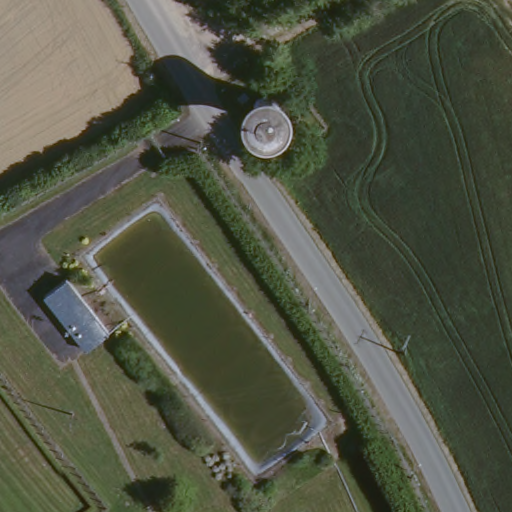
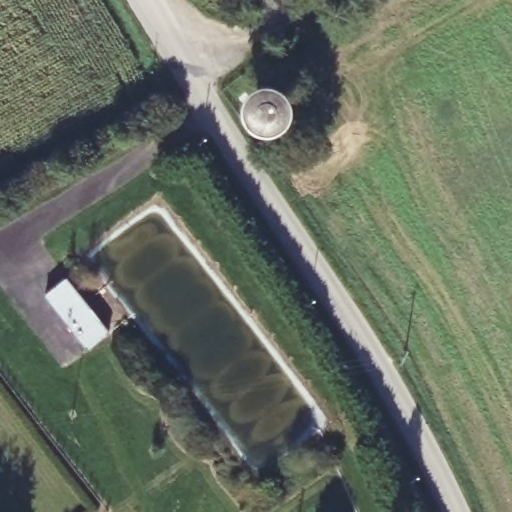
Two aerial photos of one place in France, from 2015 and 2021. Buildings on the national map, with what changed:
unchanged [(85,346),(42,296),(67,275),(111,330),(85,346)]

